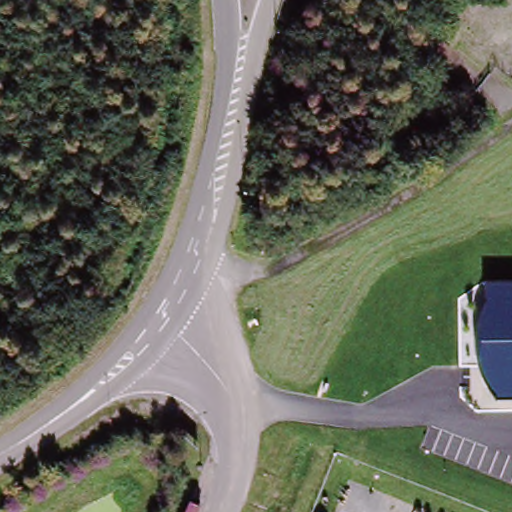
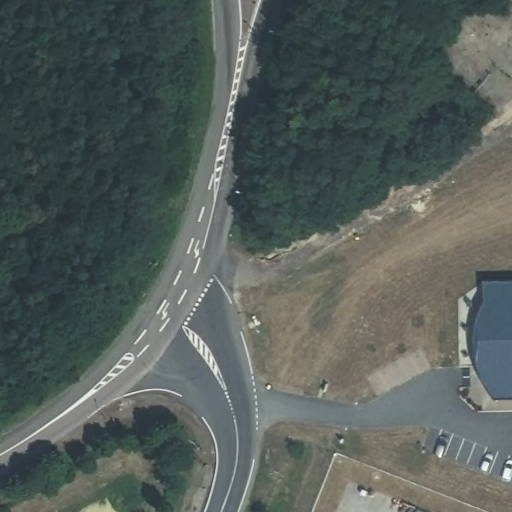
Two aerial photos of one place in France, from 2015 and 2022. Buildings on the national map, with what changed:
unchanged [(512,282),(512,411),(494,411),(494,388),(486,388),(486,367),(476,368),(475,336),(485,335),(484,282),(512,282)]

